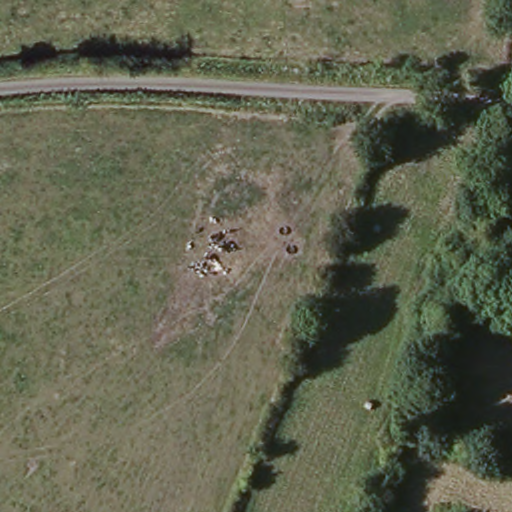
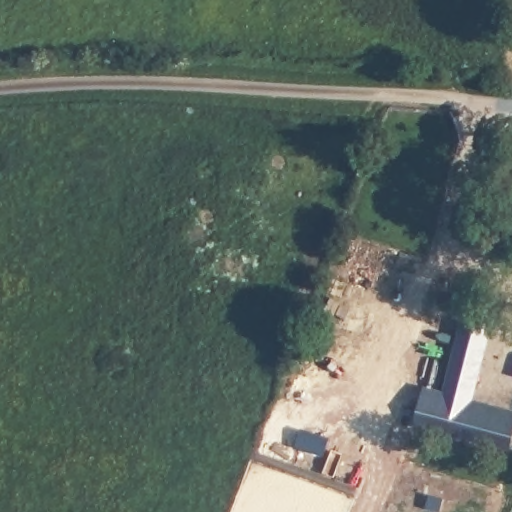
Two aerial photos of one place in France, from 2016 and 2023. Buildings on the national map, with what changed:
new [(490,333),(473,400),(512,408),(512,439),(510,450),(412,427),(421,387),(442,391),(455,324),(490,333)]

